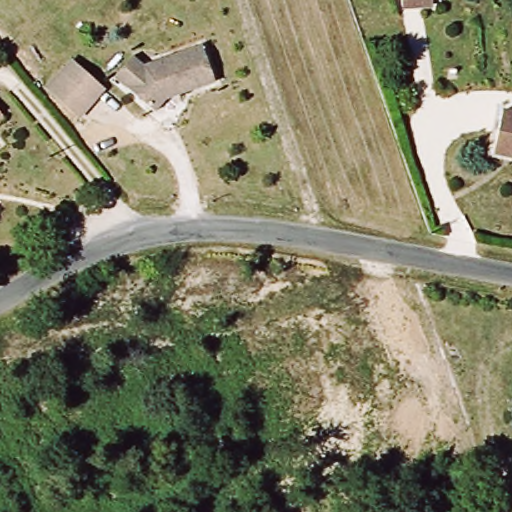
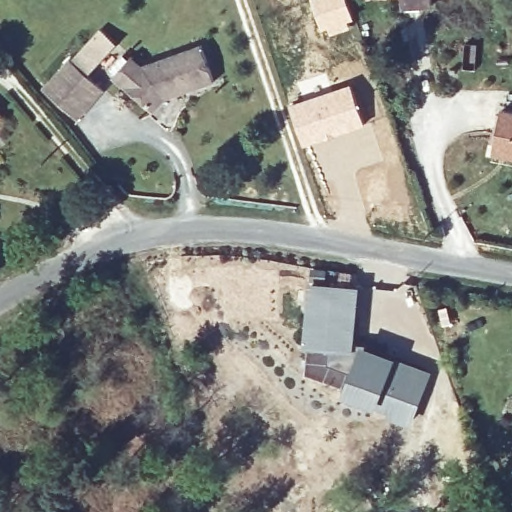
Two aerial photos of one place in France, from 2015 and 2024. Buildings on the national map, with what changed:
new [(354,21),(349,22),(351,27),(323,36),(312,0),(348,0),(354,21)]
unchanged [(399,1),(399,0),(417,0),(399,1)]
unchanged [(152,111),(122,84),(112,74),(131,53),(141,64),(200,43),(213,80),(176,93),(166,97),(152,111)]
unchanged [(82,119),(50,90),(67,72),(76,62),(108,91),(85,116),(82,119)]
new [(351,82),(364,125),(302,146),(288,105),(351,82)]
unchanged [(512,118),(512,154),(493,151),(500,116),(512,118)]
unchanged [(0,117),(5,124),(0,128),(0,117)]
new [(385,415),(386,412),(344,393),(353,373),(327,363),(329,349),(303,346),(308,283),(358,287),(354,351),(359,352),(361,343),(399,358),(430,371),(410,427),(385,415)]

